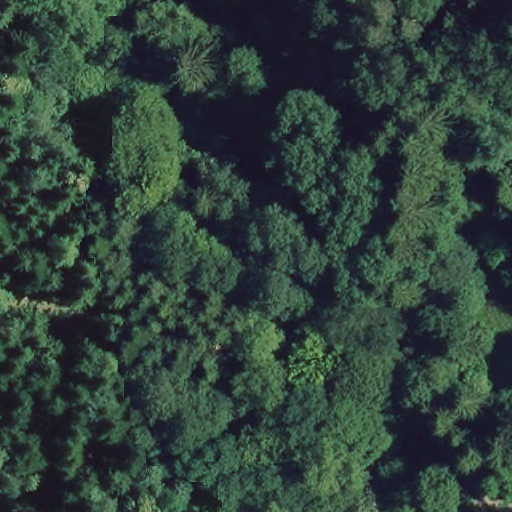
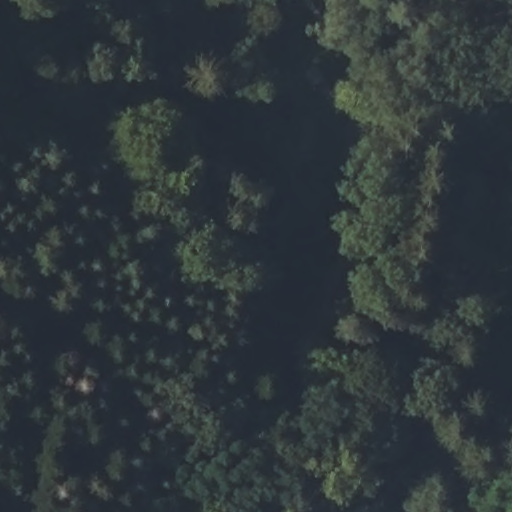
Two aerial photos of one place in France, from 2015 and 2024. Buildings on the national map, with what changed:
[]

